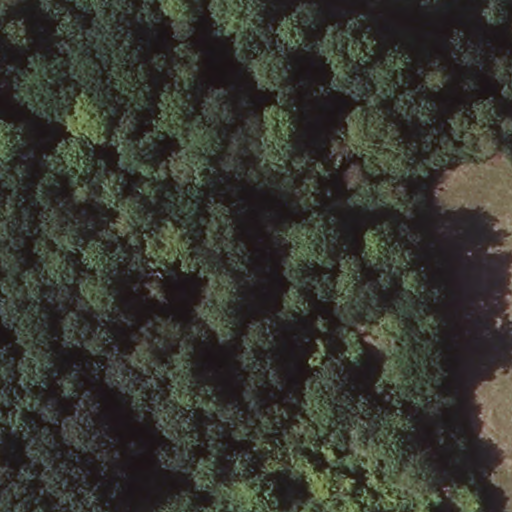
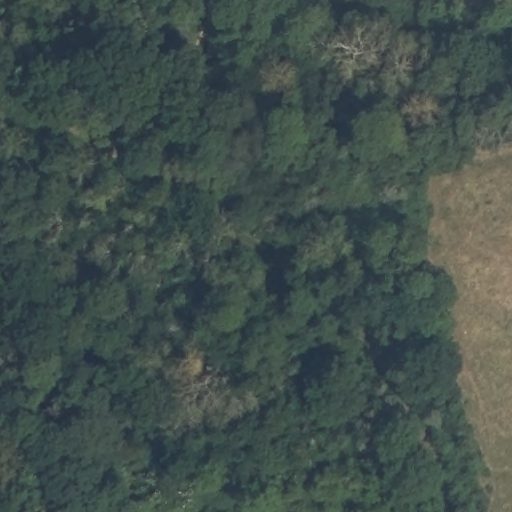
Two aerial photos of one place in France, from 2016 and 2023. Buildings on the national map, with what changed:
[]

